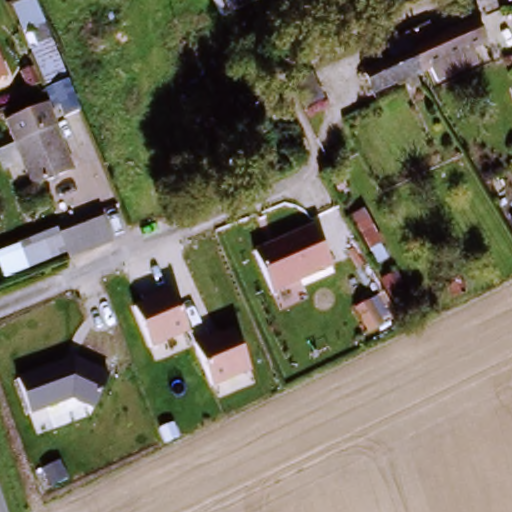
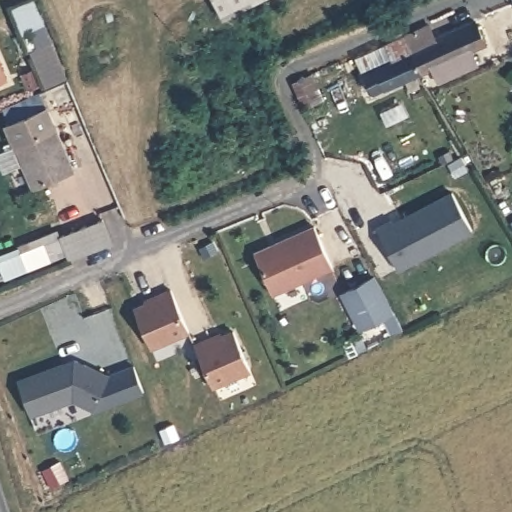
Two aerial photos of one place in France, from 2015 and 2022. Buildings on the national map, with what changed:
unchanged [(20,0),(42,0),(86,110),(68,115),(65,105),(57,107),(47,81),(31,87),(23,69),(25,67),(37,64),(12,3),(20,0)]
unchanged [(225,17),(219,0),(263,0),(225,17)]
demolished [(306,0),(324,0),(332,20),(295,40),(281,14),(306,0)]
unchanged [(390,90),(377,96),(366,72),(393,60),(387,47),(413,36),(430,29),(436,41),(475,24),(485,49),(472,54),(479,70),(442,85),(436,70),(432,71),(426,75),(407,83),(390,90)]
unchanged [(10,80),(0,84),(0,53),(10,80)]
unchanged [(10,126),(50,108),(78,170),(38,189),(10,126)]
new [(386,221),(387,225),(448,196),(466,235),(390,270),(371,228),(386,221)]
unchanged [(75,261),(65,237),(105,220),(115,244),(75,261)]
unchanged [(315,226),(334,270),(271,297),(255,254),(315,226)]
unchanged [(75,261),(68,262),(65,256),(26,271),(18,245),(57,230),(65,237),(75,261)]
new [(377,280),(395,315),(364,331),(346,297),(377,280)]
unchanged [(171,288),(188,330),(150,346),(135,302),(171,288)]
unchanged [(195,345),(231,330),(249,373),(212,385),(195,345)]
unchanged [(95,410),(72,400),(30,413),(18,378),(75,358),(110,376),(95,410)]

